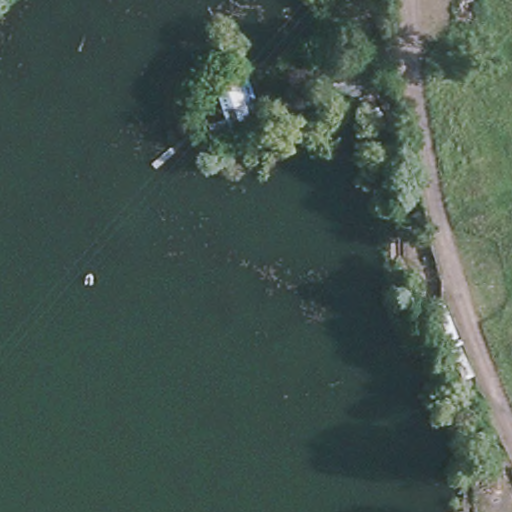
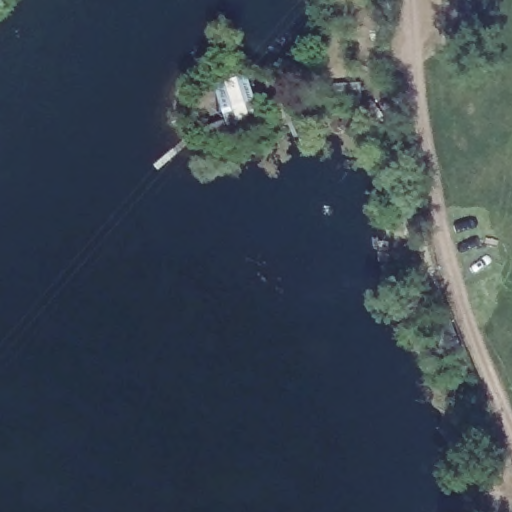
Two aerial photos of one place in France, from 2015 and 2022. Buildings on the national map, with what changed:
unchanged [(230,135),(215,90),(252,79),(269,124),(230,135)]

